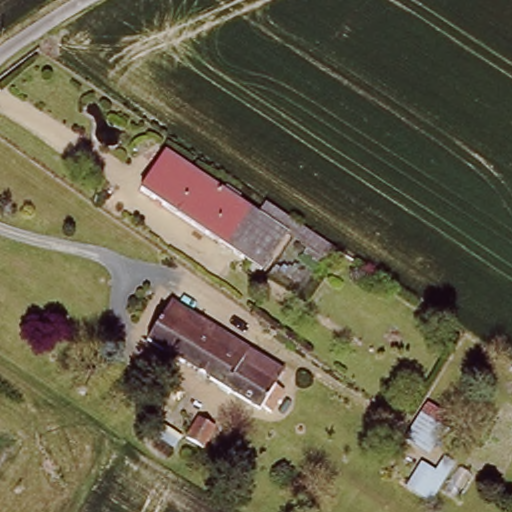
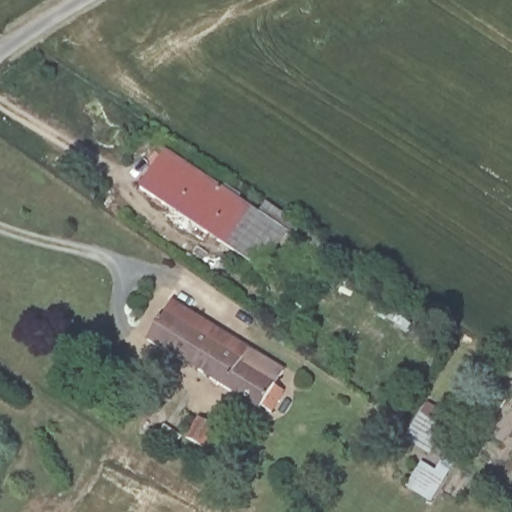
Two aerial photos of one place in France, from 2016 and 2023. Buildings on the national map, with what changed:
unchanged [(335,247),(327,260),(286,231),(267,259),(186,206),(180,214),(142,188),(168,151),(222,189),(227,182),(244,194),(240,200),(257,212),(265,201),(335,247)]
unchanged [(180,214),(186,206),(267,259),(261,268),(180,214)]
unchanged [(217,332),(195,367),(150,338),(175,302),(219,330),(217,332)]
unchanged [(277,386),(285,391),(272,411),(264,406),(261,410),(195,367),(217,332),(234,342),(235,340),(249,348),(286,371),(277,386)]
unchanged [(452,418),(432,452),(410,438),(432,405),(452,418)]
unchanged [(217,426),(203,446),(187,435),(202,415),(217,426)]
unchanged [(452,467),(431,501),(410,487),(421,468),(435,477),(444,462),(452,467)]

